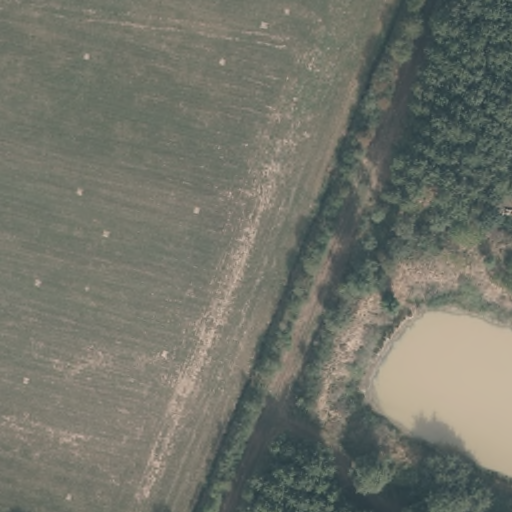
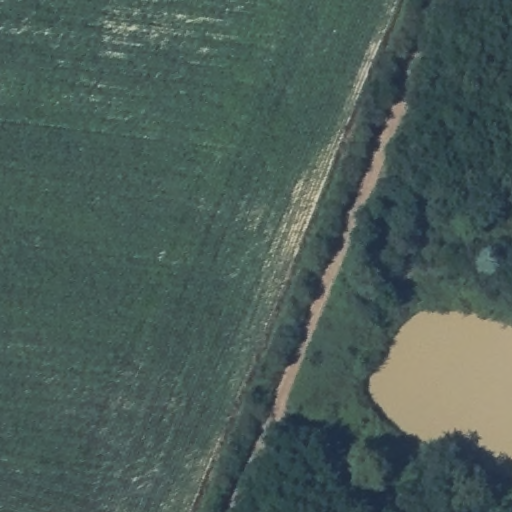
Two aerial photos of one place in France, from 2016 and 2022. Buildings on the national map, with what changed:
[]

